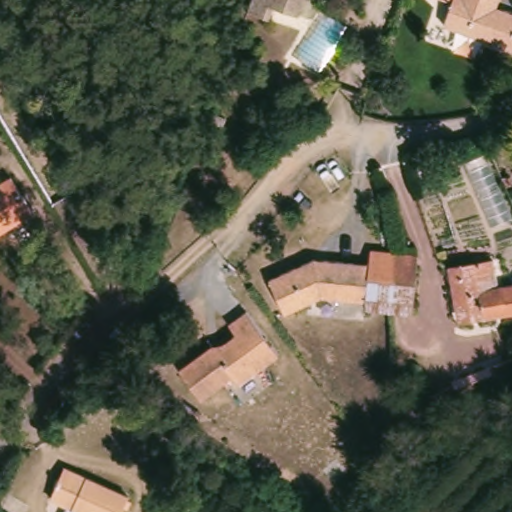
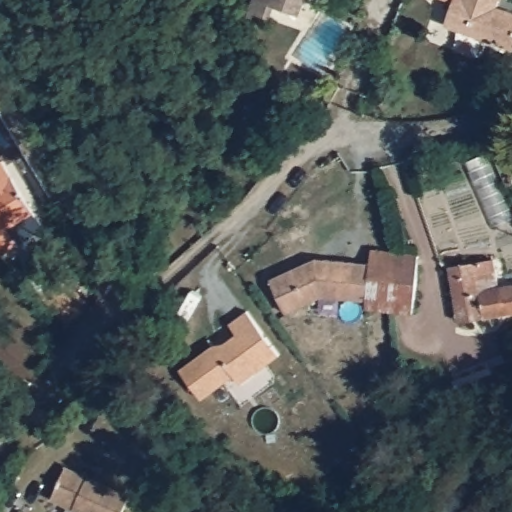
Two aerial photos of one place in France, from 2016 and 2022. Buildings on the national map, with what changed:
unchanged [(289,15),(262,4),(263,0),(294,0),(289,15)]
unchanged [(512,56),(446,31),(455,8),(433,0),(498,0),(493,13),(503,16),(512,20),(512,56)]
unchanged [(9,181),(32,217),(0,238),(0,187),(9,181)]
unchanged [(361,315),(364,300),(370,264),(372,250),(397,254),(388,320),(361,315)]
unchanged [(424,260),(412,326),(388,320),(397,254),(424,260)]
unchanged [(364,300),(323,293),(286,310),(271,276),(316,255),(324,256),(370,264),(364,300)]
unchanged [(453,266),(494,260),(498,286),(512,284),(512,313),(459,321),(453,266)]
unchanged [(280,353),(243,383),(236,376),(205,401),(182,373),(213,347),(216,351),(236,334),(228,325),(245,311),(280,353)]
unchanged [(512,391),(512,392),(492,401),(488,392),(453,403),(447,388),(503,367),(512,391)]
unchanged [(437,421),(427,407),(437,399),(442,396),(453,410),(448,413),(437,421)]
unchanged [(123,512),(68,512),(70,507),(54,499),(70,468),(130,496),(123,512)]
unchanged [(2,512),(0,512),(0,511),(2,512)]

